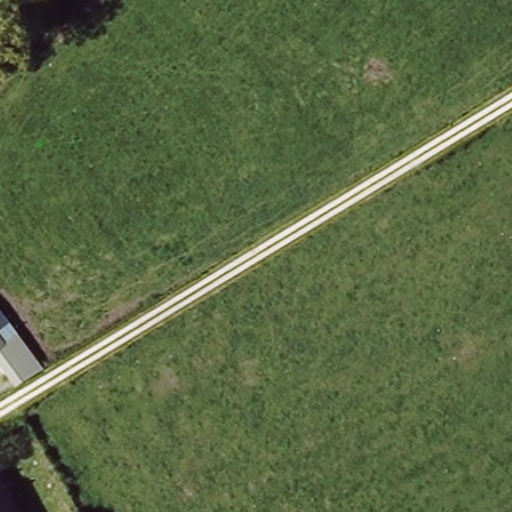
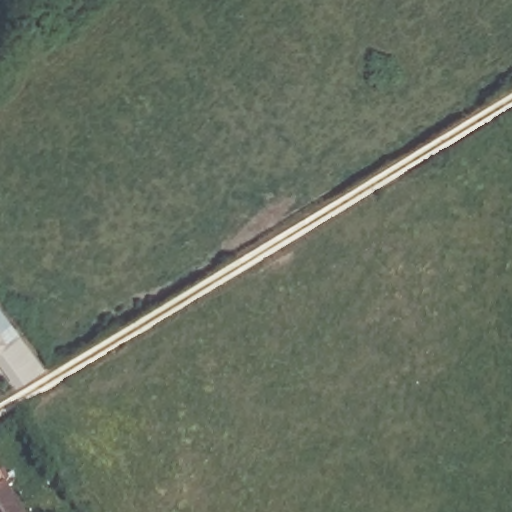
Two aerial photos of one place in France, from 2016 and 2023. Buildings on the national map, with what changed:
unchanged [(6,357),(0,360),(0,346),(6,357)]
unchanged [(24,512),(0,512),(0,484),(5,480),(24,512)]

